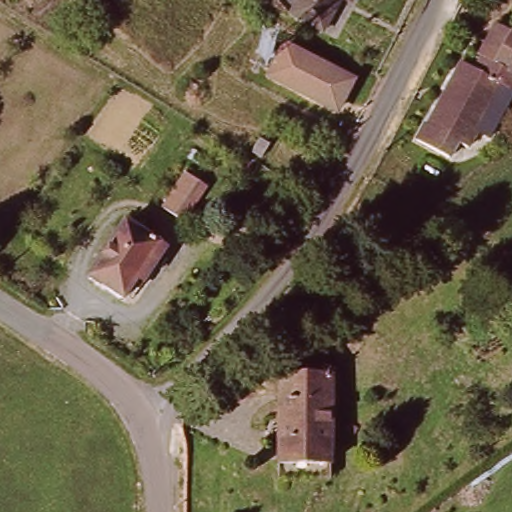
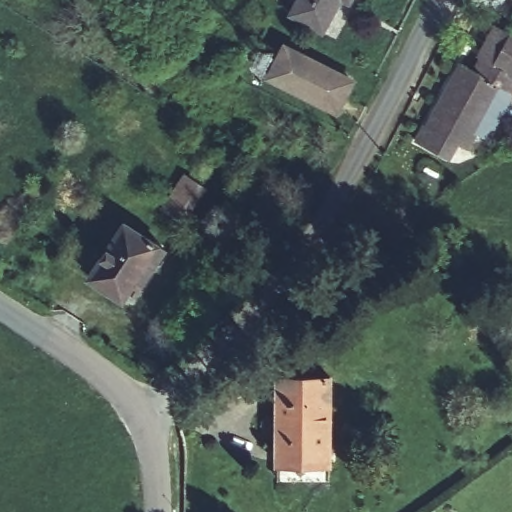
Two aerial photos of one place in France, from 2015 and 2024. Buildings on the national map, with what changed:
unchanged [(319,33),(287,15),(296,0),(338,0),(319,33)]
unchanged [(347,3),(341,0),(349,0),(347,3)]
unchanged [(492,24),(512,35),(512,89),(489,136),(480,131),(471,148),(460,142),(452,160),(419,143),(427,127),(429,128),(461,65),(472,71),(480,57),(476,55),(492,24)]
unchanged [(340,110),(275,77),(280,63),(289,46),(355,79),(340,110)]
unchanged [(203,183),(180,221),(165,211),(187,174),(203,183)]
unchanged [(132,282),(118,306),(85,285),(120,229),(157,253),(137,285),(132,282)]
unchanged [(330,372),(328,470),(278,470),(280,371),(330,372)]

